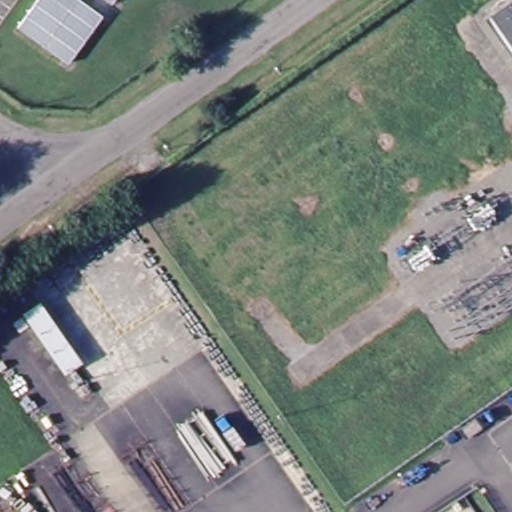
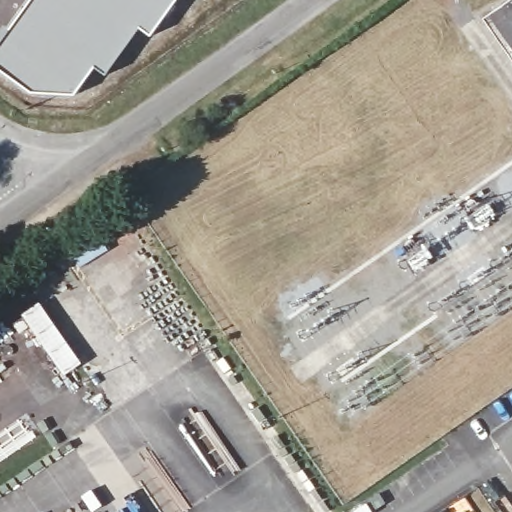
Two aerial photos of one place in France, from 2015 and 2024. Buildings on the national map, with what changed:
new [(32,0),(179,0),(152,36),(141,29),(109,74),(97,67),(77,95),(43,94),(31,92),(0,69),(0,43),(19,18),(32,0)]
demolished [(83,0),(105,14),(69,63),(19,27),(39,0),(83,0)]
demolished [(109,0),(117,0),(114,3),(109,0)]
unchanged [(510,0),(512,0),(512,56),(485,18),(510,0)]
new [(41,300),(85,361),(66,374),(23,313),(41,300)]

